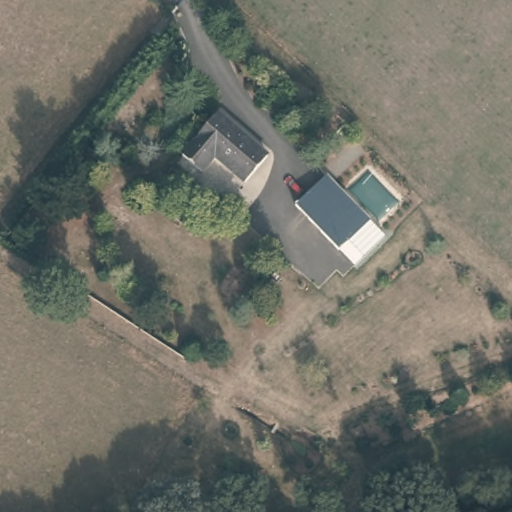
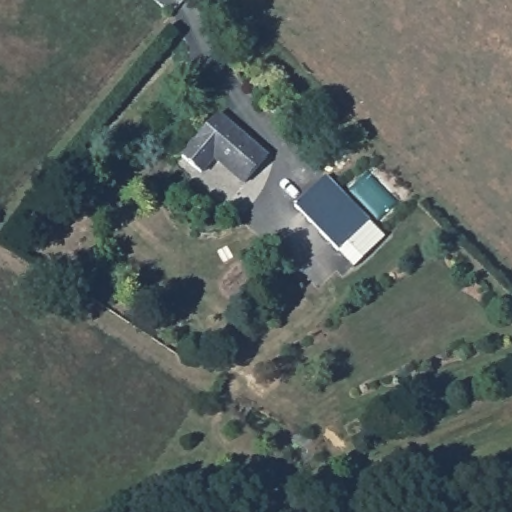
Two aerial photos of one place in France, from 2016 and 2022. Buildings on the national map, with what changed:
unchanged [(245,179),(215,154),(202,169),(183,152),(219,112),(266,153),(245,179)]
unchanged [(333,249),(287,205),(317,175),(361,218),(333,249)]

